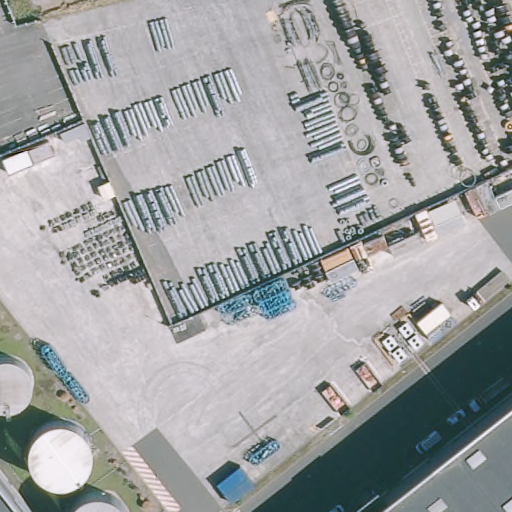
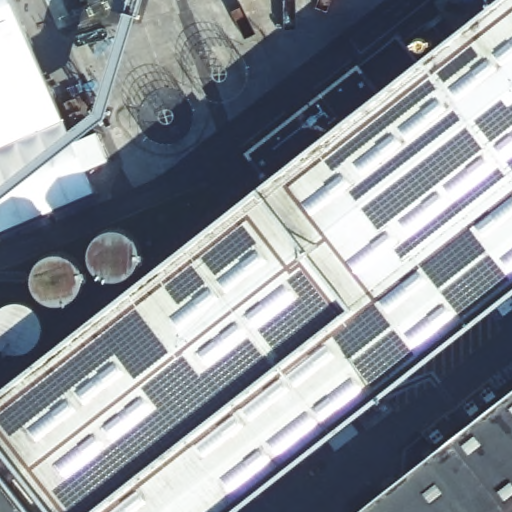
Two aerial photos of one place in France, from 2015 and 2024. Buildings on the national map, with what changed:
new [(77,146),(101,137),(111,165),(87,176),(94,197),(1,236),(0,232),(0,0),(17,0),(77,146)]
new [(512,280),(216,512),(35,512),(0,467),(0,378),(485,0),(512,0),(512,280)]
unchanged [(512,512),(352,512),(512,386),(512,512)]
unchanged [(35,512),(0,512),(0,467),(35,512)]

